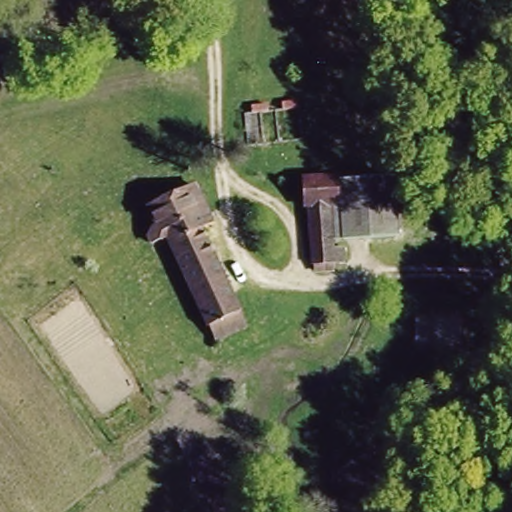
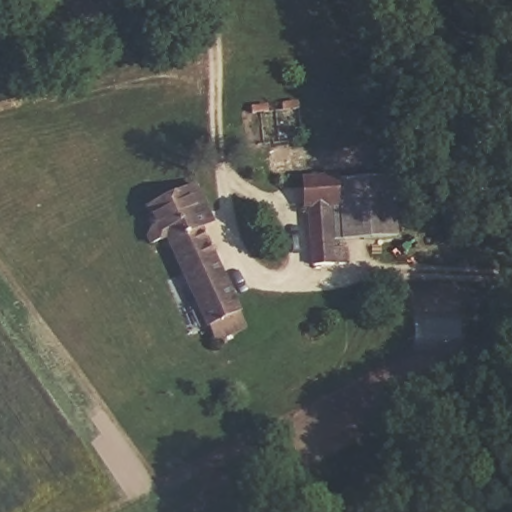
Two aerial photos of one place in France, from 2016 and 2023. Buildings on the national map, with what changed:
unchanged [(397,174),(402,234),(387,235),(330,240),(330,218),(338,218),(337,177),(388,174),(397,174)]
unchanged [(337,177),(338,218),(330,218),(330,240),(330,250),(342,250),(342,267),(334,267),(334,279),(313,279),(313,223),(307,223),(306,178),(337,177)]
unchanged [(187,187),(205,231),(199,234),(242,329),(212,346),(160,239),(145,246),(137,228),(152,221),(145,208),(187,187)]

